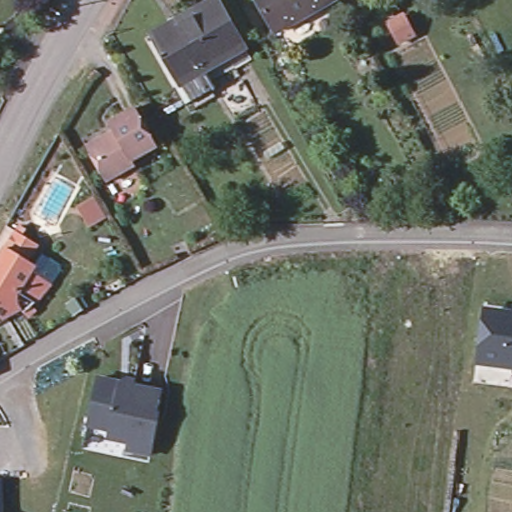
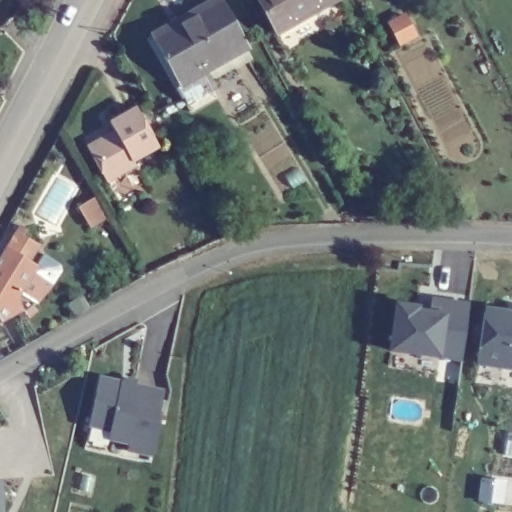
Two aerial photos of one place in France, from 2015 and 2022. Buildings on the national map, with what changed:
unchanged [(201,111),(187,89),(184,91),(155,39),(218,0),(219,0),(248,48),(212,72),(227,95),(201,111)]
unchanged [(275,30),(258,0),(329,0),(275,30)]
unchanged [(405,19),(415,39),(400,47),(389,27),(405,19)]
unchanged [(120,132),(114,122),(135,110),(158,152),(137,163),(120,132)]
unchanged [(131,166),(133,169),(107,184),(88,151),(113,136),(108,126),(114,122),(120,132),(137,163),(131,166)]
unchanged [(15,230),(20,233),(17,239),(32,247),(22,264),(29,268),(37,256),(54,267),(55,272),(45,287),(30,305),(18,315),(17,313),(10,316),(0,322),(0,253),(11,235),(15,230)]
new [(467,305),(460,357),(385,348),(392,295),(467,305)]
unchanged [(511,310),(512,304),(512,370),(475,365),(483,306),(511,310)]
unchanged [(157,409),(159,410),(150,450),(127,446),(129,439),(109,435),(111,426),(88,421),(98,373),(122,378),(128,375),(135,376),(133,381),(162,387),(157,409)]
demolished [(22,432),(18,466),(0,466),(0,432),(6,432),(22,432)]
new [(5,512),(0,512),(0,480),(2,480),(5,512)]

